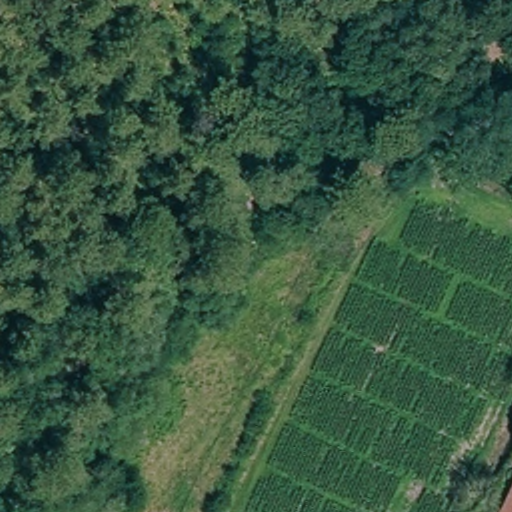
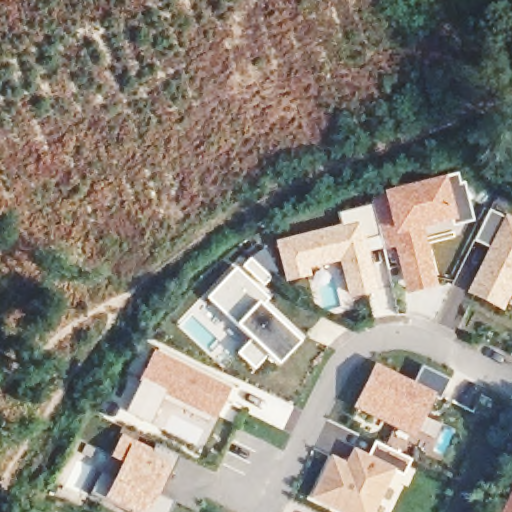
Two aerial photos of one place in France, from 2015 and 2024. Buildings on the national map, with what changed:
new [(407,295),(396,246),(372,252),(380,291),(350,298),(341,261),(312,268),(313,276),(286,282),(277,241),(342,224),(340,212),(372,204),(373,198),(385,190),(447,176),(459,175),(461,184),(466,183),(475,221),(456,226),(455,221),(426,228),(439,285),(407,295)]
new [(491,247),(477,240),(492,210),(506,217),(507,214),(512,216),(512,297),(506,310),(467,293),(491,247)]
new [(261,289),(269,297),(260,302),(302,341),(280,364),(270,354),(256,369),(240,353),(252,338),(238,323),(210,298),(237,268),(252,258),(274,278),(261,289)]
new [(166,393),(151,424),(126,412),(155,351),(231,389),(217,419),(166,393)]
new [(378,364),(416,382),(425,367),(451,380),(442,400),(436,397),(417,437),(354,406),(378,364)]
new [(101,474),(116,477),(124,462),(111,457),(122,432),(155,448),(157,443),(180,456),(162,489),(177,501),(171,512),(129,512),(91,493),(101,474)]
new [(347,461),(354,447),(370,455),(377,442),(412,459),(405,475),(397,471),(377,512),(338,512),(312,498),(333,454),(347,461)]
unchanged [(512,512),(502,512),(512,491),(512,512)]

